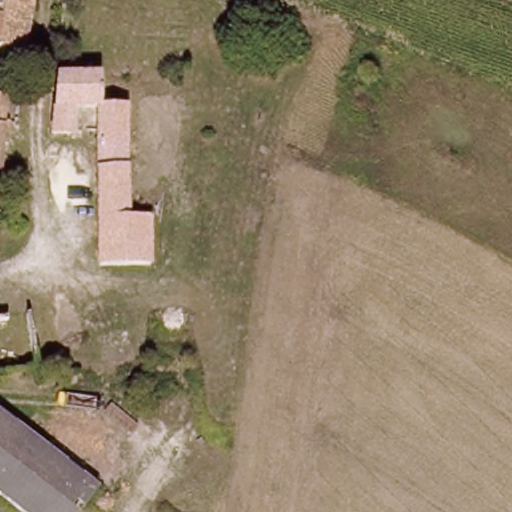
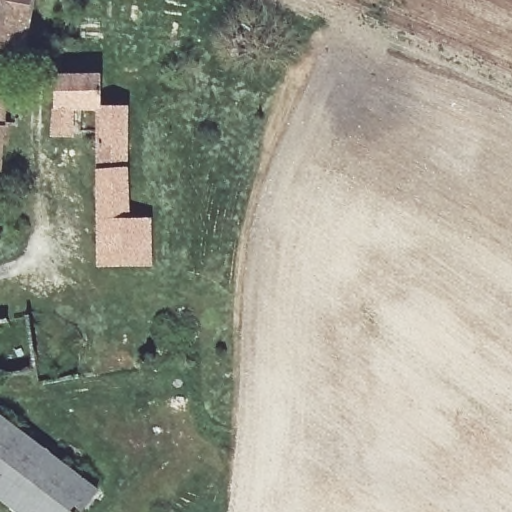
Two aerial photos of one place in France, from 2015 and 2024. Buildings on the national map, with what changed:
unchanged [(0,0),(34,0),(23,49),(1,44),(0,44),(0,0)]
unchanged [(72,109),(71,133),(52,132),(55,76),(96,78),(96,107),(97,110),(72,109)]
unchanged [(98,266),(97,110),(96,107),(122,106),(125,217),(148,216),(150,263),(98,266)]
unchanged [(34,375),(0,379),(0,317),(30,314),(34,375)]
unchanged [(82,512),(26,512),(0,492),(0,414),(99,488),(82,512)]

